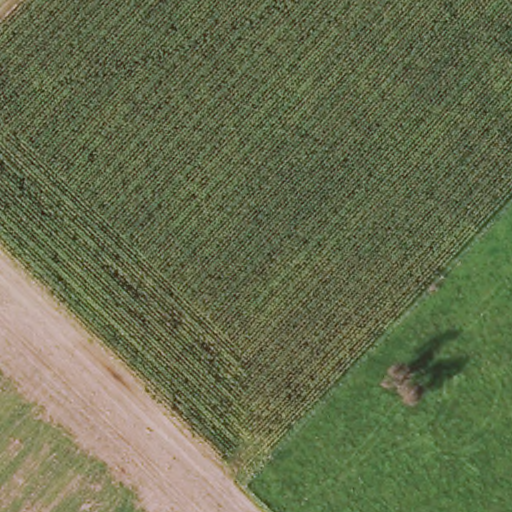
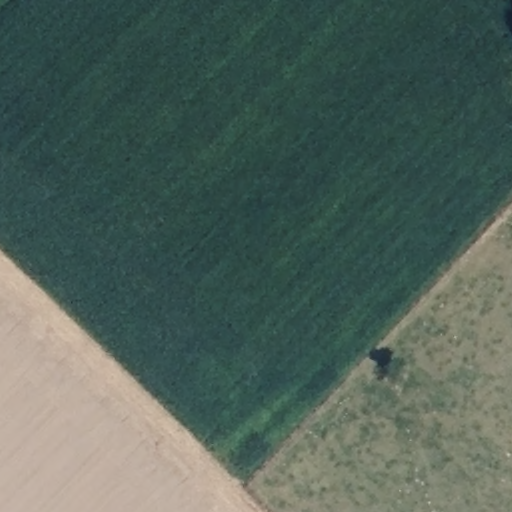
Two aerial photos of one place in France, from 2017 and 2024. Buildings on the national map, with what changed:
[]

